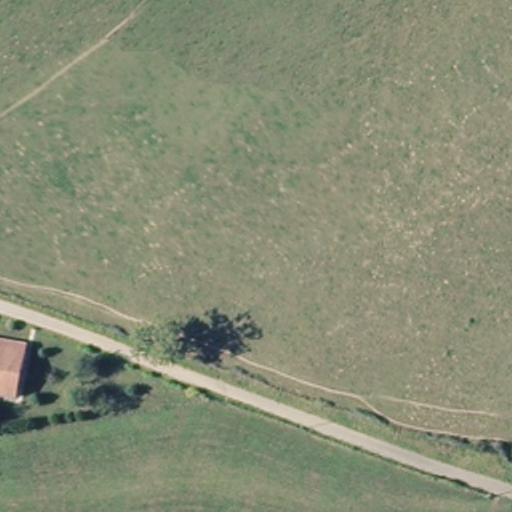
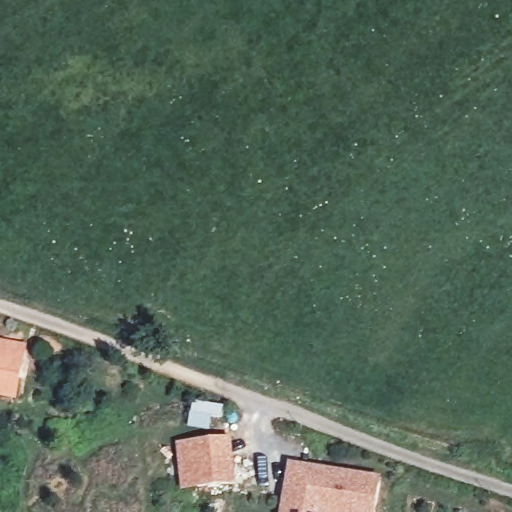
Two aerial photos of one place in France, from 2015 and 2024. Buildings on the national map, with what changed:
unchanged [(21,371),(15,392),(0,388),(0,345),(27,353),(21,371)]
new [(238,486),(181,494),(176,445),(232,437),(238,486)]
new [(377,512),(281,512),(289,462),(382,477),(377,512)]

